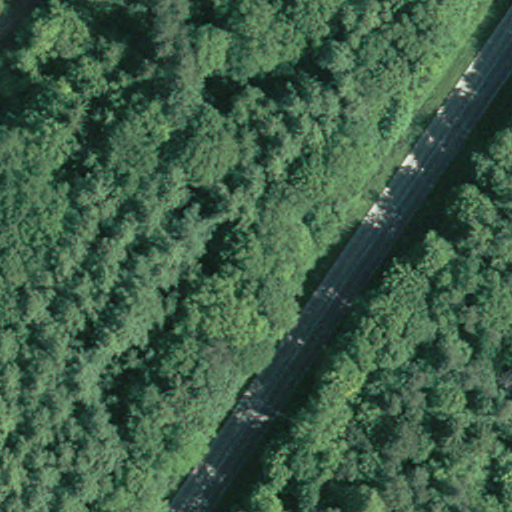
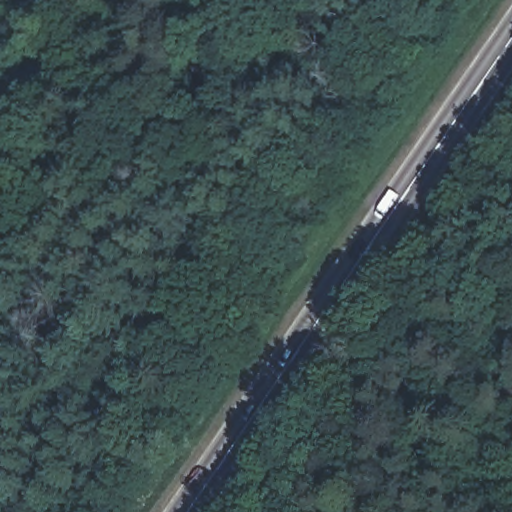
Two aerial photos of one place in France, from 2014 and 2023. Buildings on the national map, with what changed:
unchanged [(102,53),(89,71),(69,57),(82,39),(102,53)]

